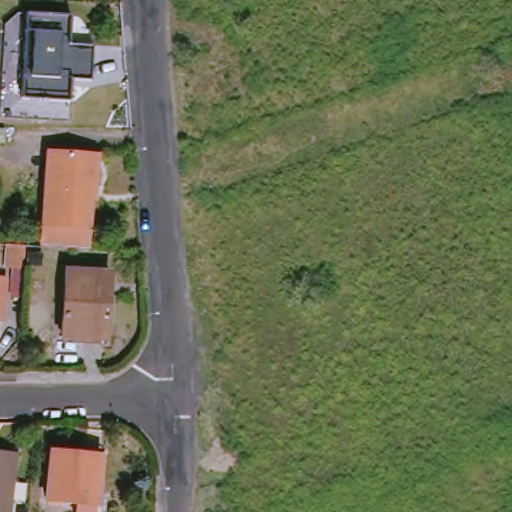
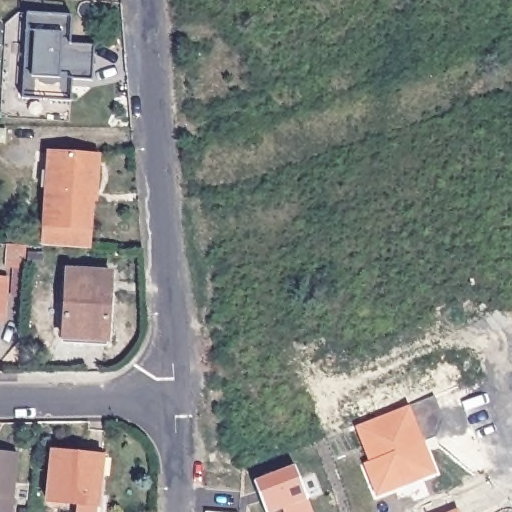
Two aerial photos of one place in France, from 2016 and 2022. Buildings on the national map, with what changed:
unchanged [(74,43),(93,44),(91,78),(71,78),(70,100),(15,99),(20,8),(77,11),(74,43)]
unchanged [(93,188),(91,226),(46,223),(49,188),(44,187),(46,160),(47,151),(98,155),(98,165),(96,189),(93,188)]
unchanged [(46,223),(91,226),(93,226),(93,228),(91,249),(45,246),(43,246),(44,226),(44,223),(46,223)]
unchanged [(26,245),(25,268),(5,266),(7,244),(26,245)]
unchanged [(69,339),(71,274),(114,277),(111,342),(69,339)]
unchanged [(0,318),(0,279),(5,280),(3,318),(0,318)]
new [(435,396),(444,419),(436,437),(439,444),(425,450),(434,473),(378,494),(366,463),(371,460),(358,426),(435,396)]
unchanged [(52,507),(56,454),(106,458),(101,510),(52,507)]
unchanged [(19,464),(16,512),(0,512),(0,462),(19,464)]
new [(296,467),(312,512),(283,512),(283,510),(276,512),(265,512),(254,482),(296,467)]
new [(458,511),(458,512),(454,512),(458,511)]

